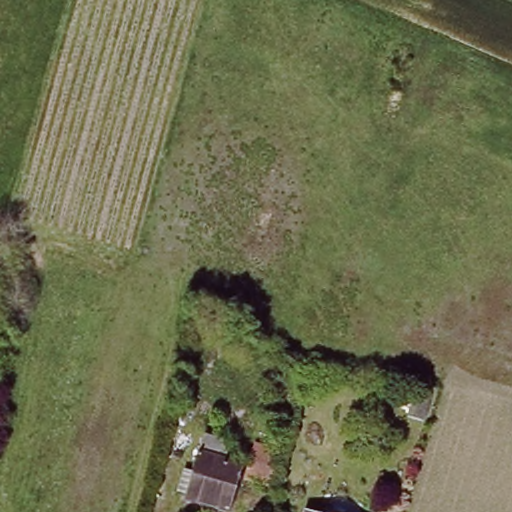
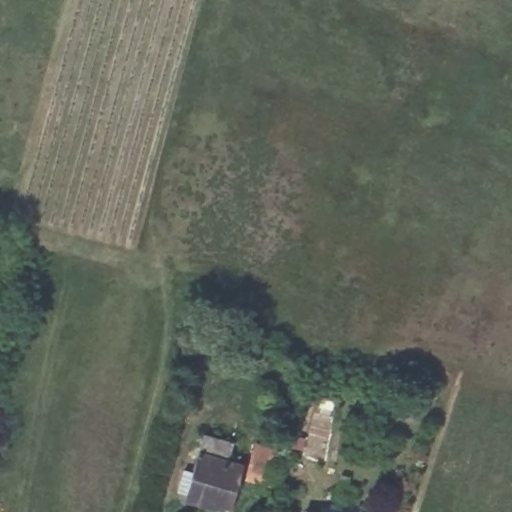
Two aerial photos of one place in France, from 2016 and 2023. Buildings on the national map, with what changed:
unchanged [(429,398),(422,420),(407,416),(413,392),(429,398)]
unchanged [(232,442),(227,461),(240,465),(226,511),(184,497),(204,433),(232,442)]
unchanged [(248,478),(256,444),(287,452),(276,486),(248,478)]

